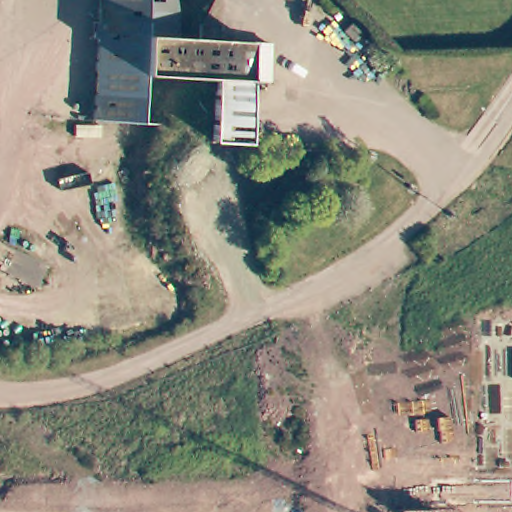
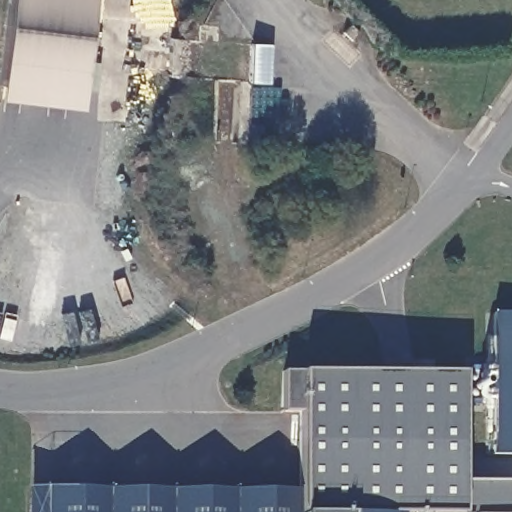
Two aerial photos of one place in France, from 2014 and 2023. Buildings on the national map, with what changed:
new [(89,35),(81,109),(0,100),(0,87),(11,0),(93,0),(89,35)]
demolished [(140,77),(137,124),(90,120),(96,38),(91,37),(92,22),(97,23),(99,0),(175,0),(175,3),(174,37),(194,38),(195,24),(216,25),(215,40),(265,42),(263,83),(246,82),(244,144),(205,142),(209,80),(140,77)]
unchanged [(343,46),(335,36),(344,28),(352,37),(343,46)]
new [(496,312),(512,312),(512,455),(492,455),(496,312)]
new [(300,411),(282,411),(283,372),(302,372),(462,373),(461,481),(512,481),(512,512),(25,512),(25,489),(300,490),(300,411)]

